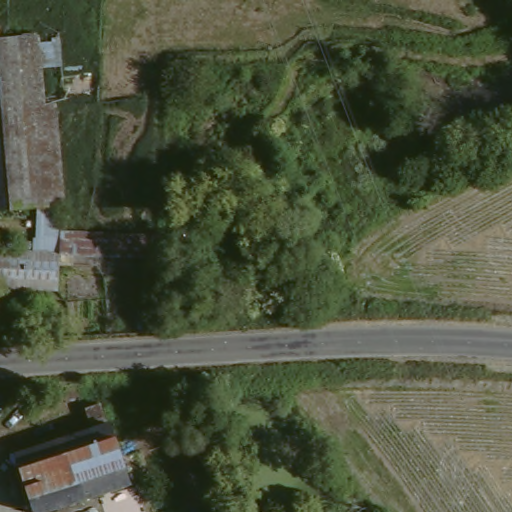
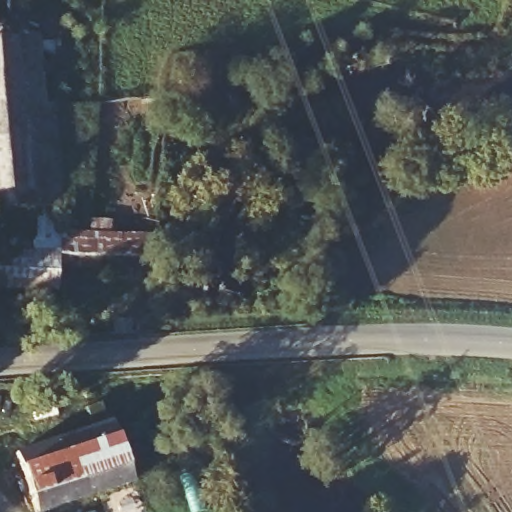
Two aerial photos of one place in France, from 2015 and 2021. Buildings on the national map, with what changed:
unchanged [(102,79),(101,105),(63,106),(65,181),(63,208),(0,211),(0,41),(59,35),(65,77),(102,79)]
unchanged [(101,258),(97,272),(60,272),(57,295),(0,292),(0,254),(26,255),(27,245),(39,243),(40,232),(149,237),(148,260),(101,258)]
unchanged [(131,501),(36,512),(31,512),(20,465),(29,465),(25,454),(64,449),(94,445),(91,425),(107,423),(109,435),(120,451),(131,501)]

